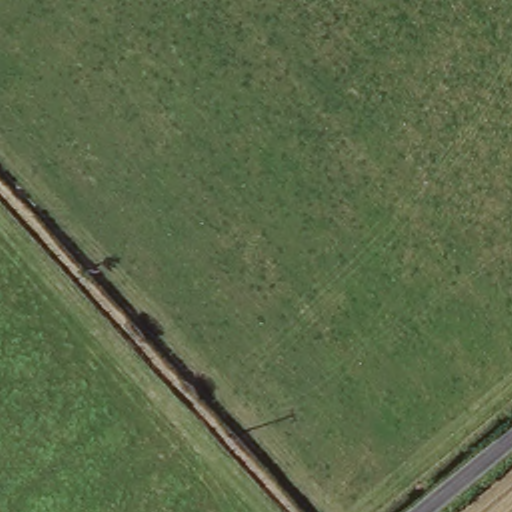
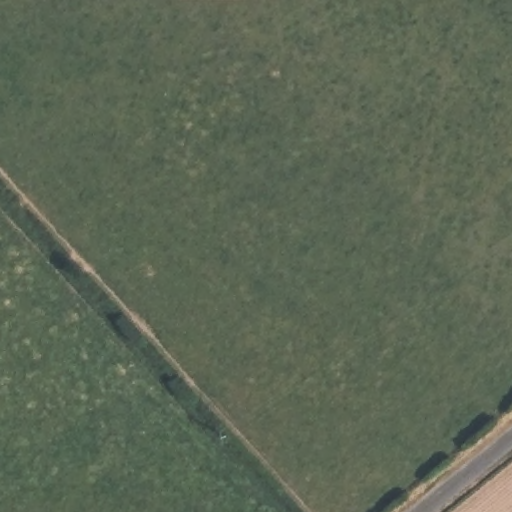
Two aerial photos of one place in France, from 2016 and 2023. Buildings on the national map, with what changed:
[]

